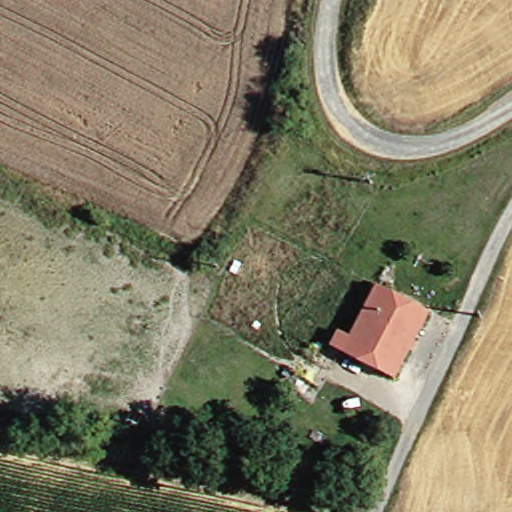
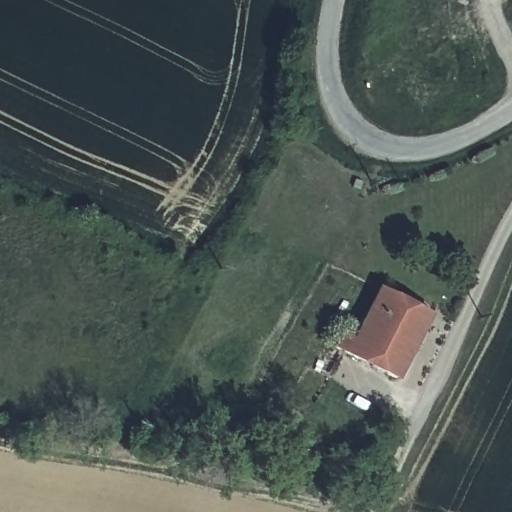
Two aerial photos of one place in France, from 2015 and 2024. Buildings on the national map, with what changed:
unchanged [(434,315),(397,374),(338,342),(347,328),(360,335),(387,288),(434,315)]

